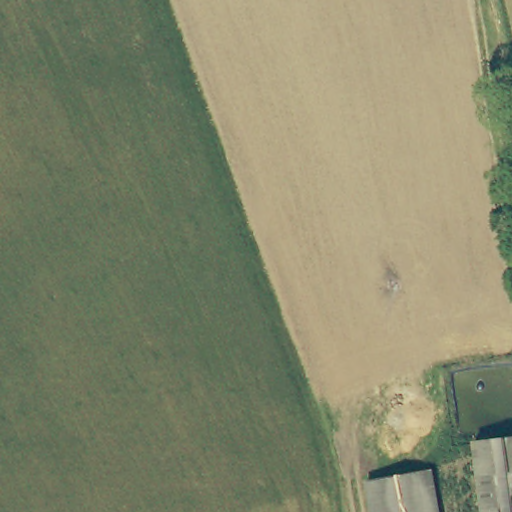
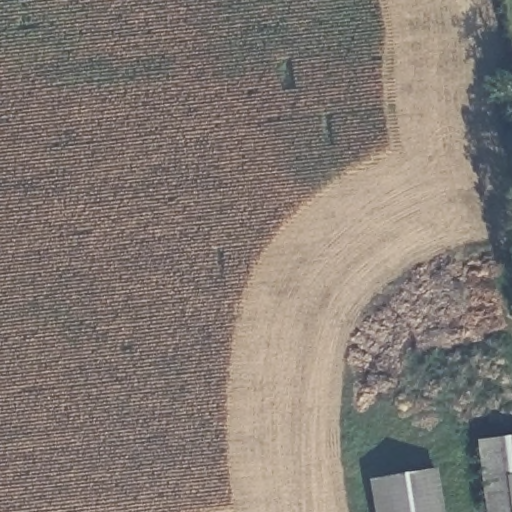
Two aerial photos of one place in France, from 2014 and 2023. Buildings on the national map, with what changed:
unchanged [(486,512),(478,442),(512,437),(512,512),(486,512)]
unchanged [(432,472),(439,512),(377,512),(372,482),(432,472)]

